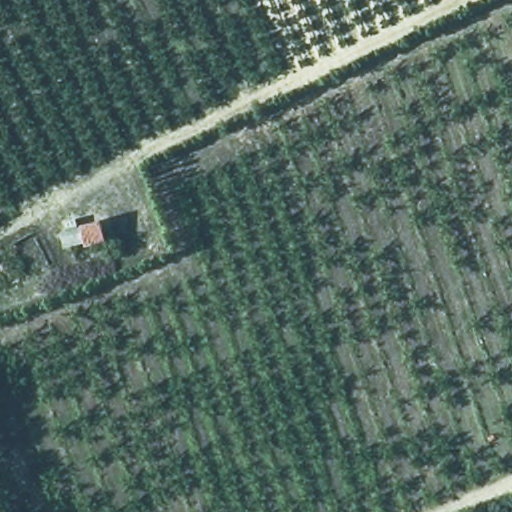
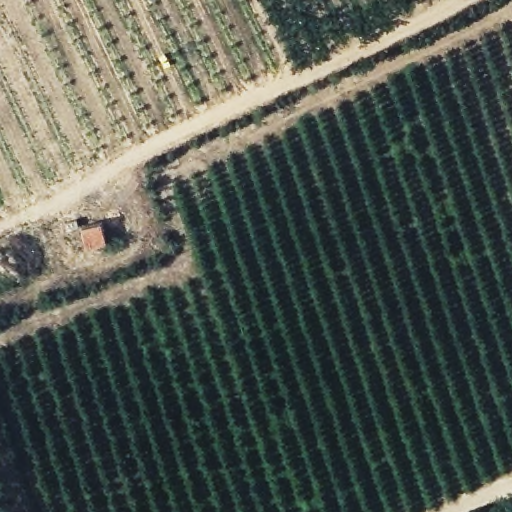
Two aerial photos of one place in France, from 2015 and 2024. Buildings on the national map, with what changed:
unchanged [(106,241),(62,248),(56,233),(81,224),(103,218),(106,241)]

